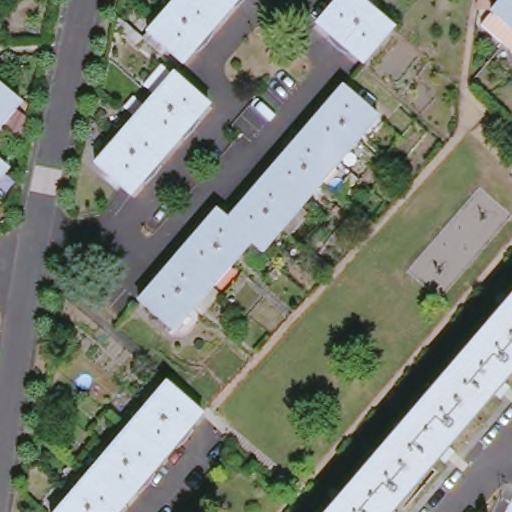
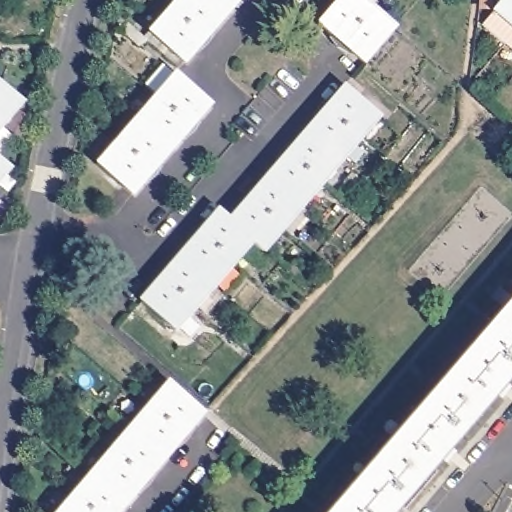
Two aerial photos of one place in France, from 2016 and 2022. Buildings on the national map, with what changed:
unchanged [(203,41),(183,63),(148,33),(168,10),(177,0),(239,0),(203,41)]
unchanged [(394,29),(363,65),(318,25),(339,0),(360,0),(394,29)]
unchanged [(487,24),(508,0),(512,0),(512,46),(509,43),(487,24)]
unchanged [(209,106),(131,196),(96,164),(155,96),(174,74),(209,106)]
unchanged [(26,104),(7,127),(20,138),(1,161),(13,170),(0,185),(0,82),(26,104)]
unchanged [(224,217),(228,221),(286,153),(305,132),(323,111),(343,88),(379,118),(358,143),(339,164),(321,185),(263,252),(252,243),(176,331),(139,301),(218,211),(224,217)]
unchanged [(449,370),(512,297),(512,376),(504,386),(507,389),(498,398),(496,396),(449,450),(452,453),(443,463),(439,460),(396,512),(328,512),(356,479),(449,370)]
unchanged [(120,512),(58,512),(148,406),(167,383),(203,414),(120,512)]

